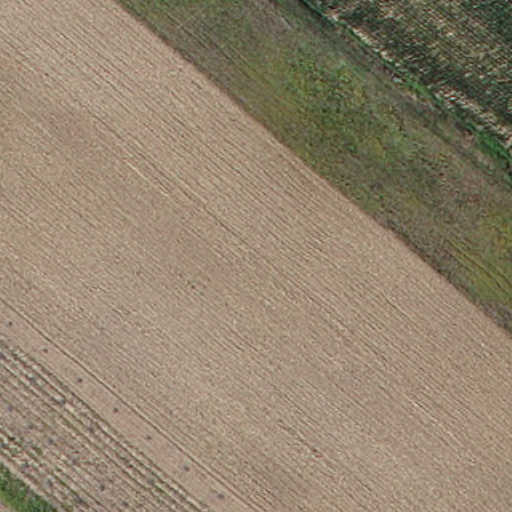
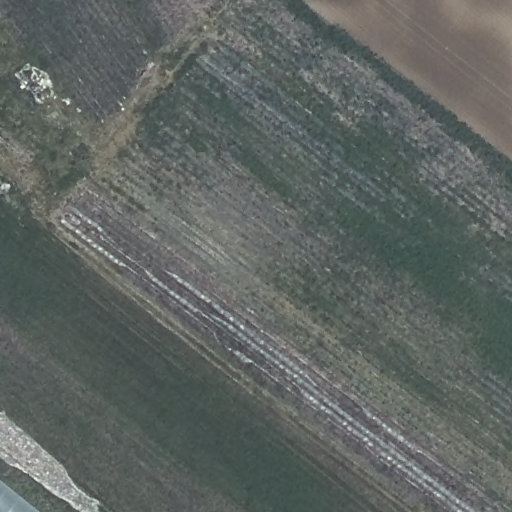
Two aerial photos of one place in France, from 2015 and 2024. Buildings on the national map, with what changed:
new [(0,485),(34,512),(0,512),(0,485)]

